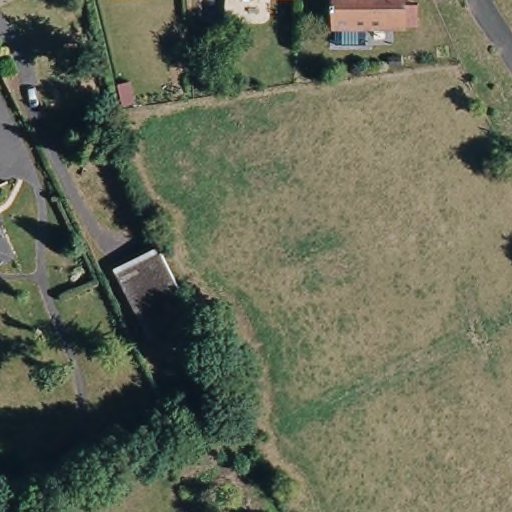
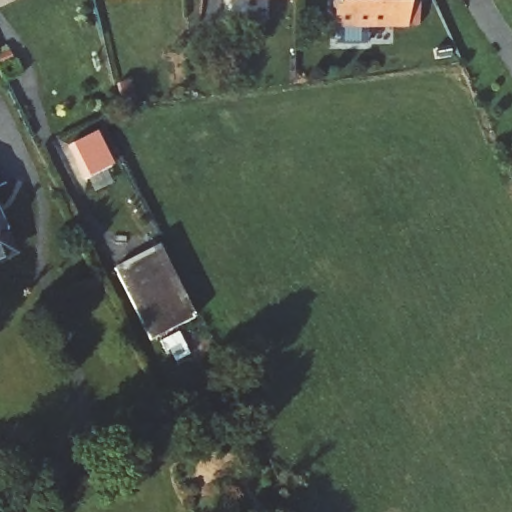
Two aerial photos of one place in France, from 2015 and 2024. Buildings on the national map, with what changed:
unchanged [(297,0),(297,4),(234,2),(234,0),(297,0)]
unchanged [(332,32),(332,0),(408,0),(408,32),(332,32)]
new [(96,134),(113,167),(88,178),(71,146),(96,134)]
unchanged [(12,257),(0,263),(0,232),(12,257)]
unchanged [(116,272),(156,253),(190,324),(150,344),(116,272)]

